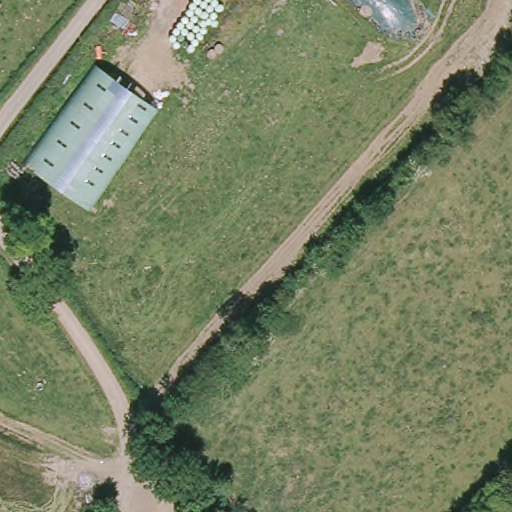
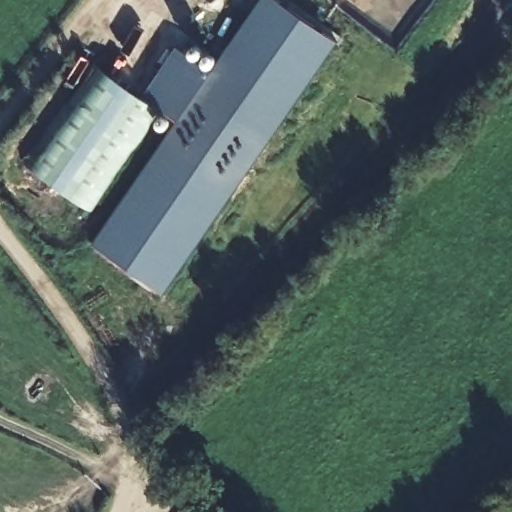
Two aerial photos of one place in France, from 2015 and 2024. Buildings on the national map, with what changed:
new [(143,99),(178,49),(210,72),(262,0),(273,0),(337,46),(161,295),(89,244),(176,121),(143,99)]
unchanged [(156,110),(87,213),(25,168),(96,67),(156,110)]

